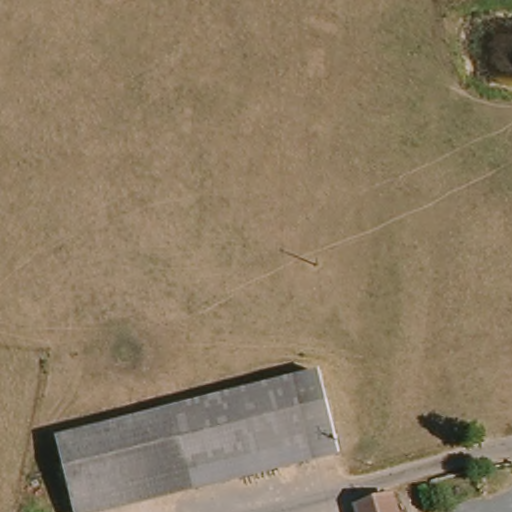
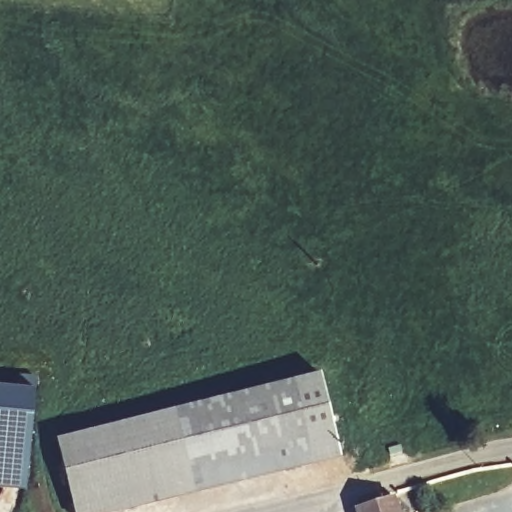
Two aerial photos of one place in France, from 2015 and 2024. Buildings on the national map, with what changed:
unchanged [(115,512),(74,512),(58,435),(319,376),(339,458),(115,512)]
new [(24,490),(0,488),(0,386),(33,389),(24,490)]
unchanged [(357,505),(364,504),(386,497),(394,507),(395,512),(359,512),(357,505)]

